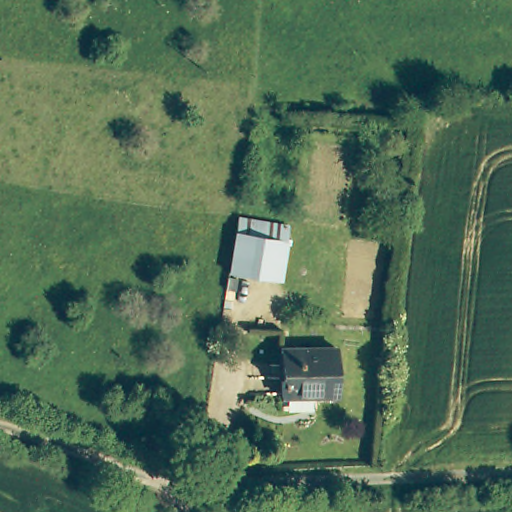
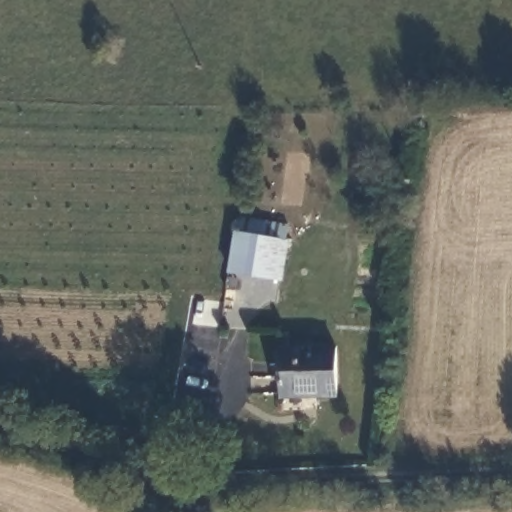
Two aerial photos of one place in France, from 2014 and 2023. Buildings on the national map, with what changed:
unchanged [(284,234),(281,273),(232,268),(234,228),(284,234)]
unchanged [(335,395),(279,397),(278,347),(334,345),(335,395)]

